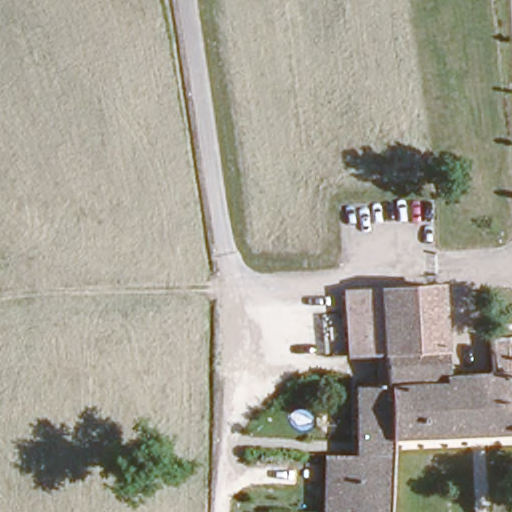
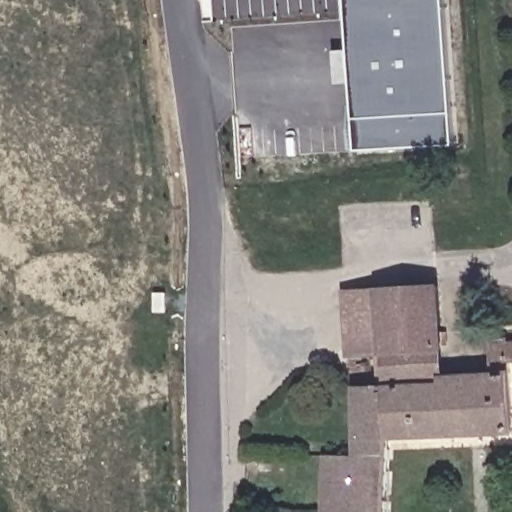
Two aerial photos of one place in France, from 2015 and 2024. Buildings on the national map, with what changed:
new [(351,0),(455,0),(463,148),(360,154),(351,0)]
unchanged [(502,356),(506,429),(383,433),(386,512),(328,512),(325,456),(352,456),(350,386),(381,385),(377,289),(432,288),(437,374),(484,374),(483,335),(502,336),(502,341),(512,341),(512,356),(502,356)]
new [(377,289),(380,355),(346,357),(342,291),(377,289)]

